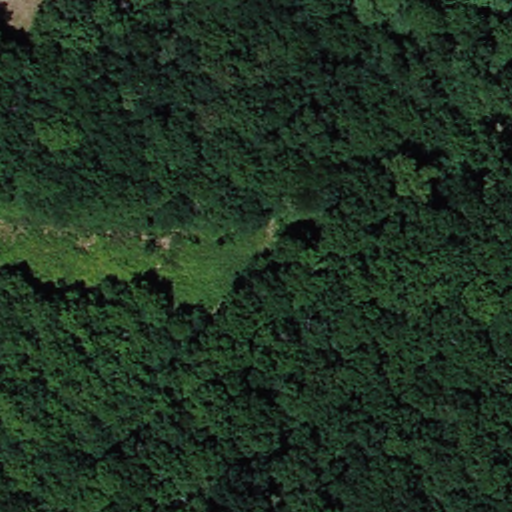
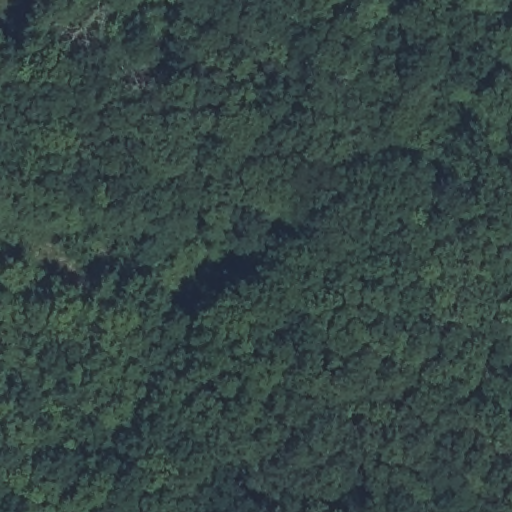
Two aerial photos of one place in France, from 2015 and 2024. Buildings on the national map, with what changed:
[]

